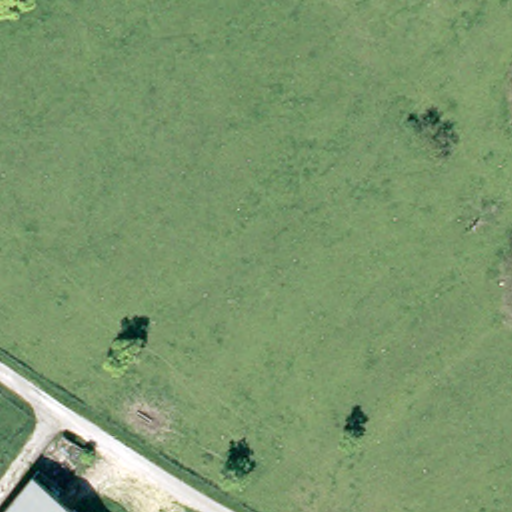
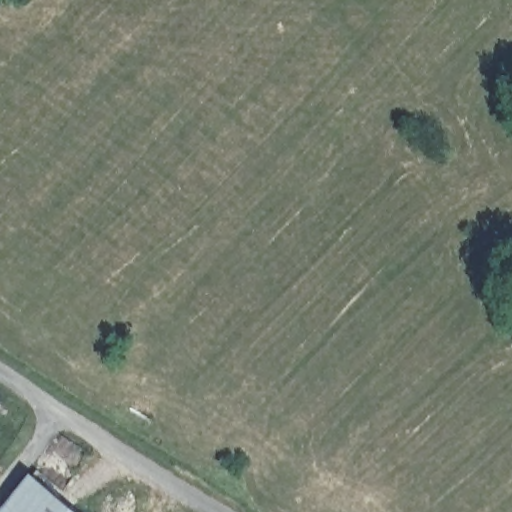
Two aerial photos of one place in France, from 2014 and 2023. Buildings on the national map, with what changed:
unchanged [(77,512),(6,512),(34,477),(77,512)]

